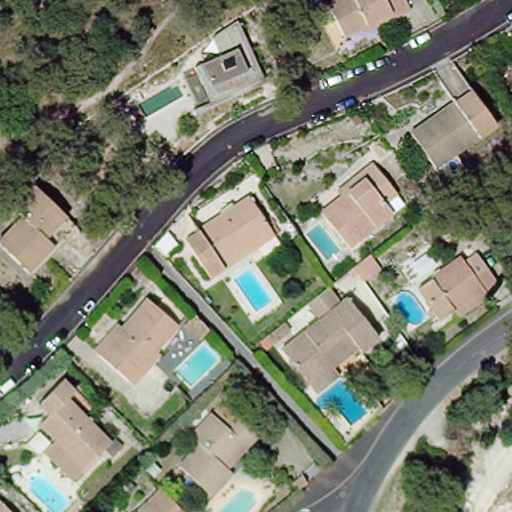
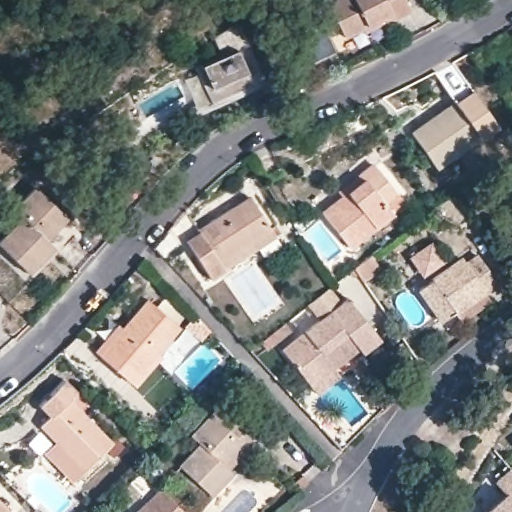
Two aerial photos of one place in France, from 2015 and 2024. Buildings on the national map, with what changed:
unchanged [(340,39),(325,16),(349,0),(400,0),(407,10),(385,26),(372,35),(364,24),(340,39)]
unchanged [(195,68),(220,55),(210,38),(237,21),(266,83),(210,105),(195,68)]
unchanged [(502,138),(441,176),(418,140),(460,112),(450,96),(468,84),(502,138)]
unchanged [(395,192),(381,203),(391,218),(348,249),(325,215),(350,200),(340,187),(357,174),(375,161),(395,192)]
unchanged [(25,279),(0,252),(0,243),(21,220),(15,213),(39,190),(75,229),(25,279)]
unchanged [(512,196),(512,229),(498,205),(512,196)]
unchanged [(238,264),(212,284),(179,235),(196,221),(206,234),(250,199),(270,229),(276,237),(238,264)]
unchanged [(464,257),(472,265),(482,258),(498,284),(445,317),(424,283),(464,257)]
unchanged [(333,293),(339,300),(318,318),(312,310),(333,293)]
unchanged [(188,334),(134,391),(106,362),(96,353),(123,324),(129,331),(155,304),(188,334)]
unchanged [(351,304),(382,343),(363,358),(360,354),(315,389),(287,354),(351,304)]
unchanged [(287,331),(289,329),(295,336),(280,349),(274,342),(287,331)]
unchanged [(42,454),(56,442),(43,429),(51,419),(39,407),(59,386),(73,400),(71,403),(116,449),(87,474),(72,486),(42,454)]
unchanged [(244,468),(239,463),(218,482),(223,488),(210,499),(188,474),(205,459),(198,451),(227,425),(256,458),(244,468)]
new [(506,494),(496,482),(511,469),(512,471),(512,512),(484,512),(506,494)]
unchanged [(158,499),(170,512),(144,512),(158,499)]
unchanged [(14,512),(0,512),(0,501),(14,512)]

